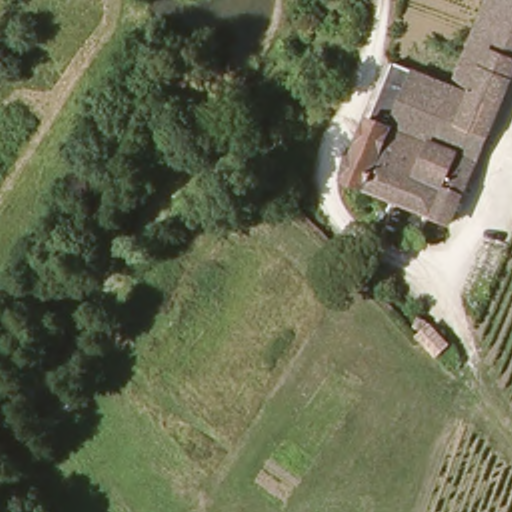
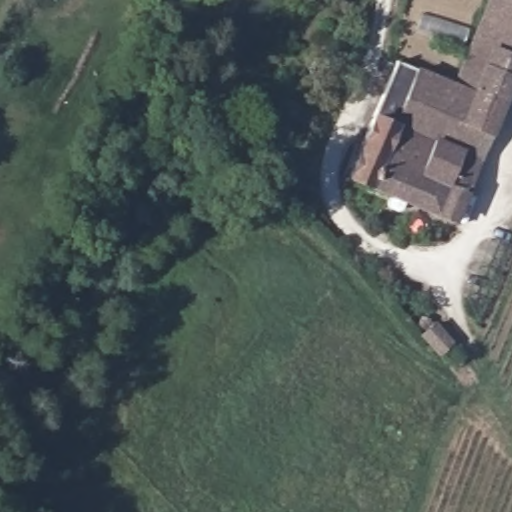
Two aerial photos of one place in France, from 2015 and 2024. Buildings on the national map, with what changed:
unchanged [(512,0),(512,58),(471,40),(489,0),(512,0)]
unchanged [(512,58),(512,67),(448,222),(344,176),(378,88),(443,115),(451,85),(471,40),(512,58)]
unchanged [(390,57),(451,85),(443,115),(378,88),(390,57)]
unchanged [(426,312),(432,317),(426,324),(421,319),(426,312)]
unchanged [(439,325),(456,343),(445,354),(428,336),(439,325)]

